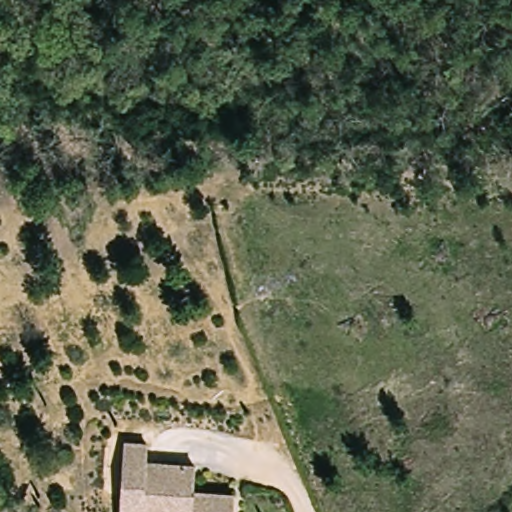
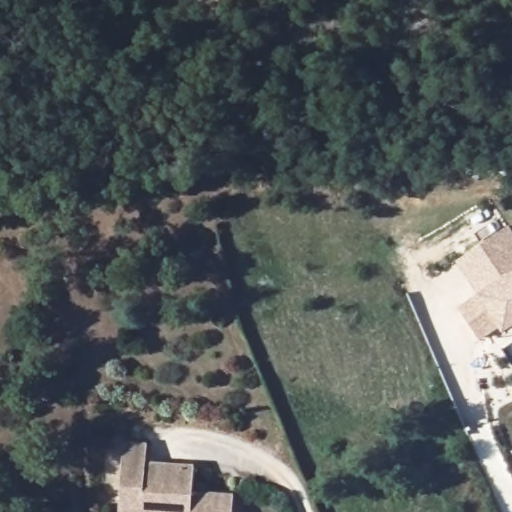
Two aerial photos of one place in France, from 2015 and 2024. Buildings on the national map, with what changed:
new [(505,333),(501,326),(482,341),(458,307),(479,295),(457,262),(509,225),(512,229),(512,328),(505,333)]
unchanged [(122,440),(150,442),(147,461),(197,465),(193,490),(238,494),(235,512),(117,512),(122,440)]

